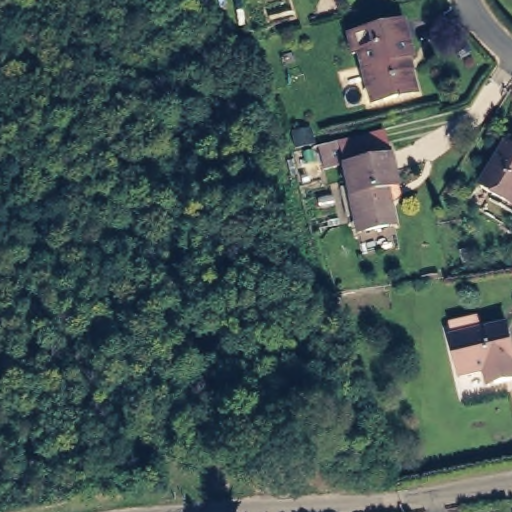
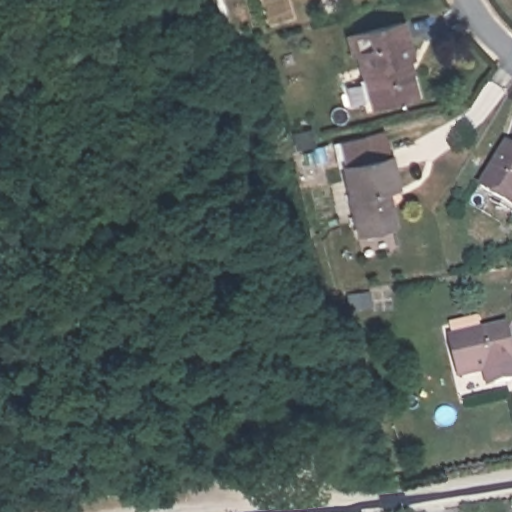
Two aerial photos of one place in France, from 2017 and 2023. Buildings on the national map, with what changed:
unchanged [(404,22),(415,59),(408,61),(418,95),(373,107),(359,57),(354,58),(348,37),(404,22)]
unchanged [(310,136),(312,151),(295,155),(292,139),(310,136)]
unchanged [(343,171),(337,148),(363,142),(369,166),(388,162),(395,192),(385,195),(393,231),(356,239),(342,172),(343,171)]
unchanged [(512,147),(512,203),(487,187),(512,147)]
unchanged [(492,195),(483,207),(475,202),(482,189),(492,195)]
unchanged [(487,373),(463,380),(453,341),(455,340),(452,326),(480,318),(484,332),(509,327),(512,338),(512,383),(498,387),(490,388),(487,373)]

